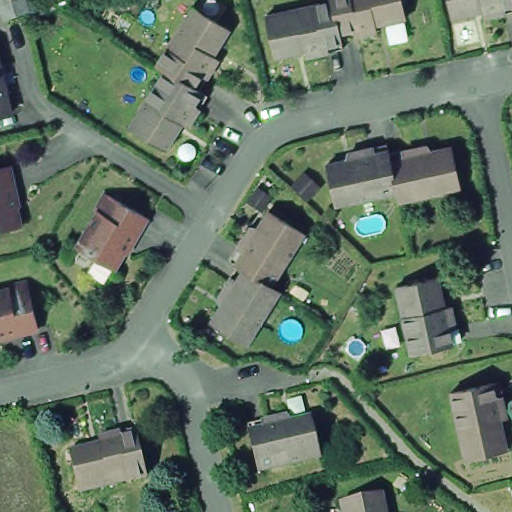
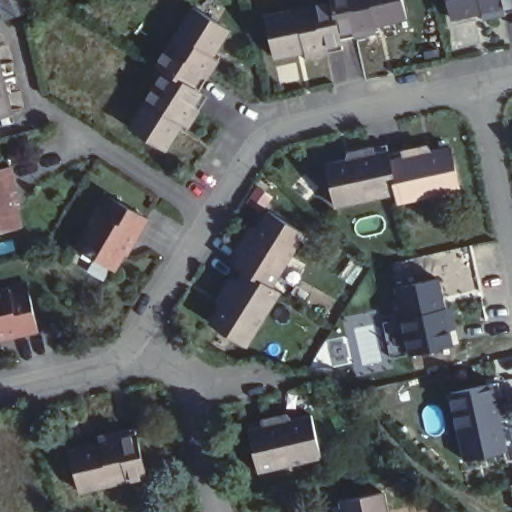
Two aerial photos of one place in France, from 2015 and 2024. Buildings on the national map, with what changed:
unchanged [(5,18),(0,3),(0,0),(25,0),(28,12),(5,18)]
unchanged [(329,0),(402,0),(406,16),(340,32),(342,40),(275,55),(265,14),(329,0)]
unchanged [(447,17),(443,0),(512,0),(512,3),(447,17)]
unchanged [(199,85),(207,90),(172,148),(135,125),(171,68),(162,62),(197,5),(235,27),(199,85)]
unchanged [(0,70),(10,106),(0,109),(0,70)]
unchanged [(329,163),(390,150),(391,159),(451,146),(461,188),(400,201),(398,193),(338,206),(329,163)]
unchanged [(9,202),(16,231),(0,235),(0,172),(5,171),(11,201),(9,202)]
unchanged [(137,222),(122,249),(120,248),(105,273),(90,265),(67,252),(86,219),(87,217),(86,216),(85,216),(86,214),(96,198),(137,222)]
unchanged [(206,316),(240,265),(231,259),(265,205),(300,227),(266,282),(274,286),(242,339),(206,316)]
unchanged [(406,347),(391,283),(433,273),(447,338),(406,347)]
unchanged [(3,336),(3,334),(0,335),(0,290),(3,289),(2,287),(22,282),(33,329),(3,336)]
unchanged [(461,457),(447,393),(488,383),(501,448),(461,457)]
unchanged [(260,470),(250,431),(310,415),(321,455),(260,470)]
unchanged [(66,450),(132,433),(142,475),(77,491),(66,450)]
unchanged [(511,483),(512,483),(512,485),(511,483)]
unchanged [(340,500),(383,488),(388,512),(343,512),(340,500)]

